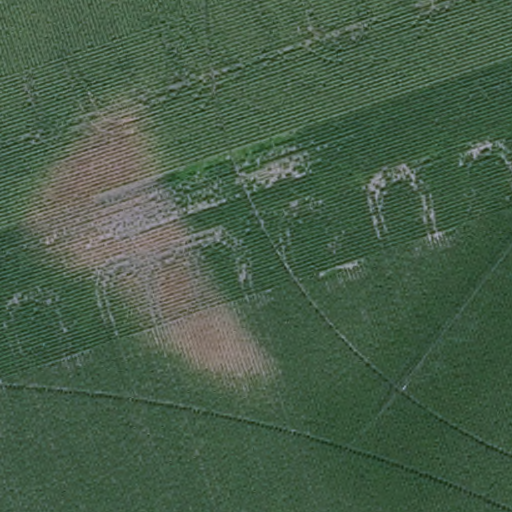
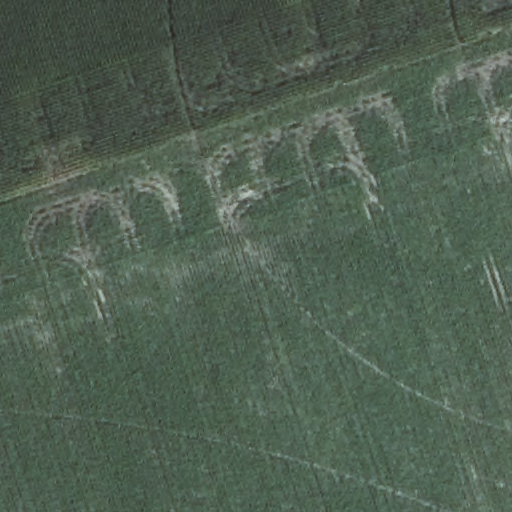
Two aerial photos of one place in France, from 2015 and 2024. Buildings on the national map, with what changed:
[]

